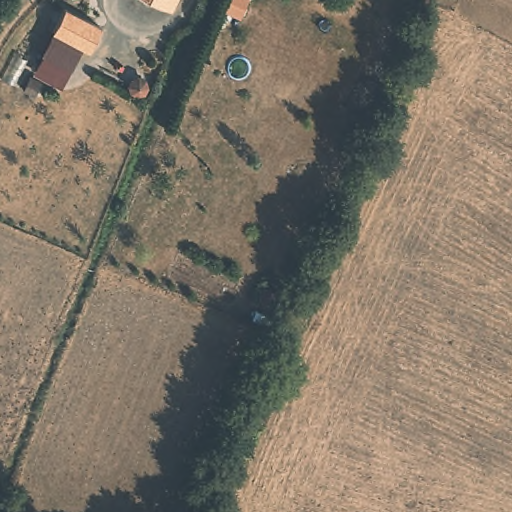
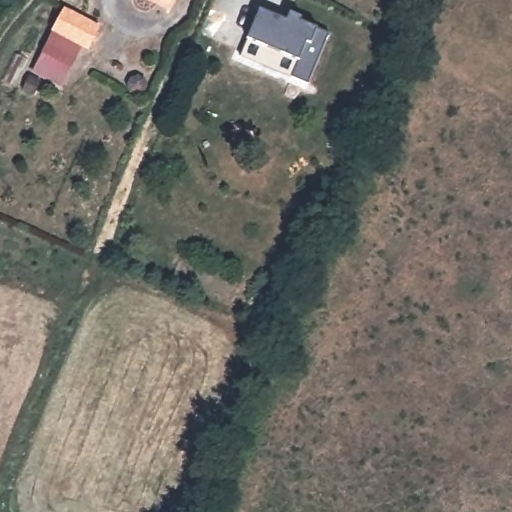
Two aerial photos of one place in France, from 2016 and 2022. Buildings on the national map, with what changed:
unchanged [(161,0),(176,0),(173,5),(161,0)]
unchanged [(54,34),(63,10),(100,26),(91,49),(54,34)]
new [(259,10),(286,21),(290,13),(302,18),(298,26),(310,31),(313,26),(329,34),(307,85),(240,56),(259,10)]
unchanged [(33,74),(54,34),(80,45),(59,86),(33,74)]

